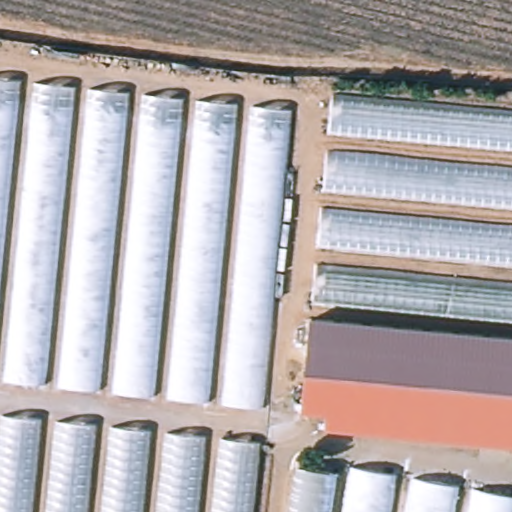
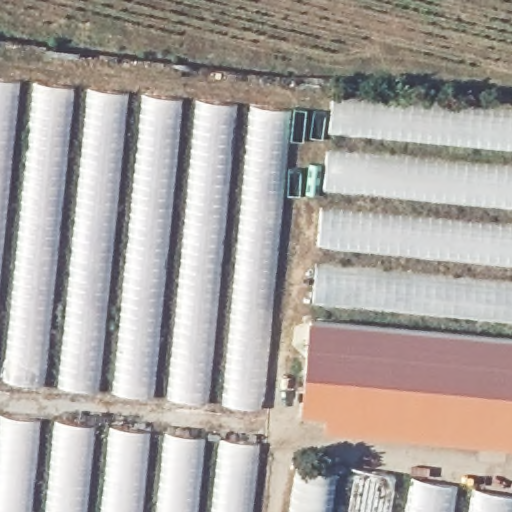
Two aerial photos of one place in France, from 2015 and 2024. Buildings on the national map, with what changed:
unchanged [(257,409),(0,382),(0,78),(285,108),(257,409)]
unchanged [(327,98),(512,114),(512,324),(311,305),(327,98)]
unchanged [(512,446),(323,427),(325,411),(300,409),(306,321),(512,342),(512,446)]
unchanged [(256,512),(0,512),(0,413),(263,440),(256,512)]
unchanged [(292,512),(301,459),(345,466),(338,512),(292,512)]
unchanged [(512,512),(338,512),(345,466),(512,496),(512,512)]

